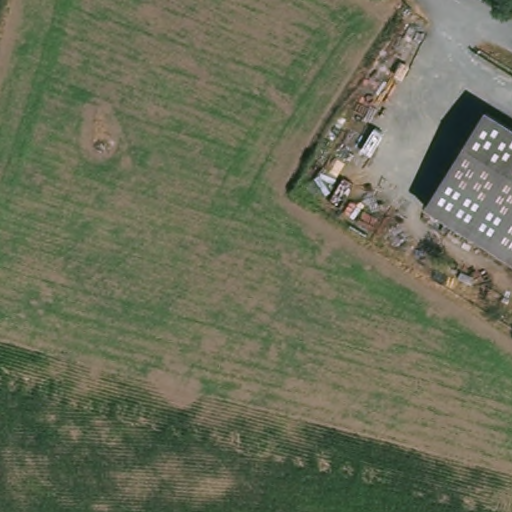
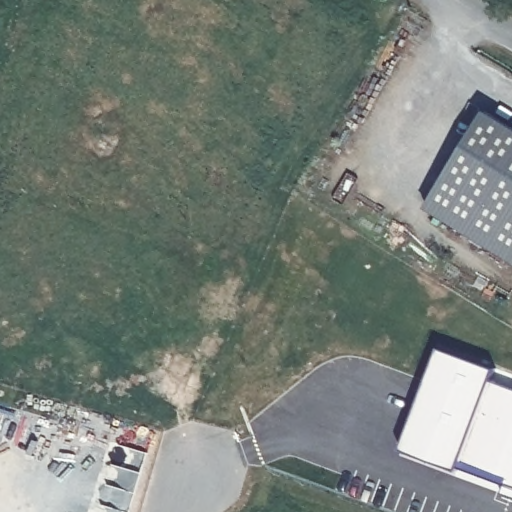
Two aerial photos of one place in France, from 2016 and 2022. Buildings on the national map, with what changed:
unchanged [(512,125),(512,261),(426,207),(486,109),(512,125)]
new [(499,369),(494,381),(512,388),(512,497),(502,492),(507,477),(462,460),(458,471),(401,450),(440,347),(499,369)]

